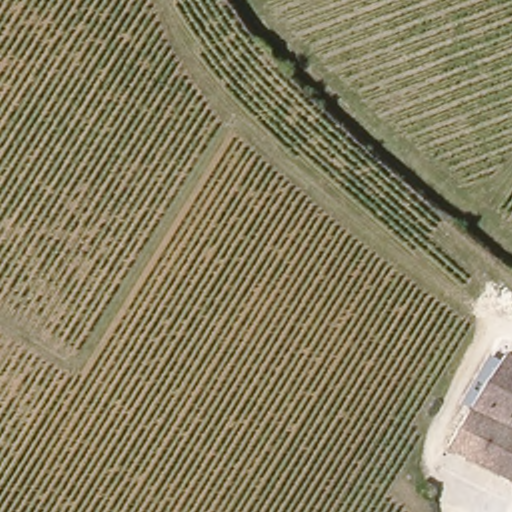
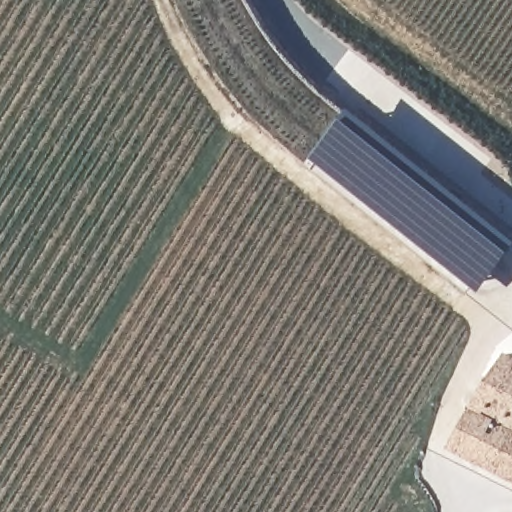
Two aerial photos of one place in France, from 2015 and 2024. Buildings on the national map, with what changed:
new [(349,110),(512,239),(512,250),(479,293),(310,159),(349,110)]
unchanged [(512,487),(451,455),(457,445),(507,351),(512,354),(512,487)]
demolished [(437,484),(426,500),(413,492),(423,475),(437,484)]

